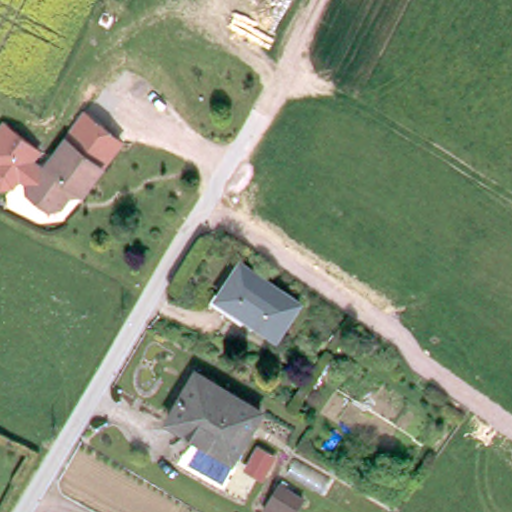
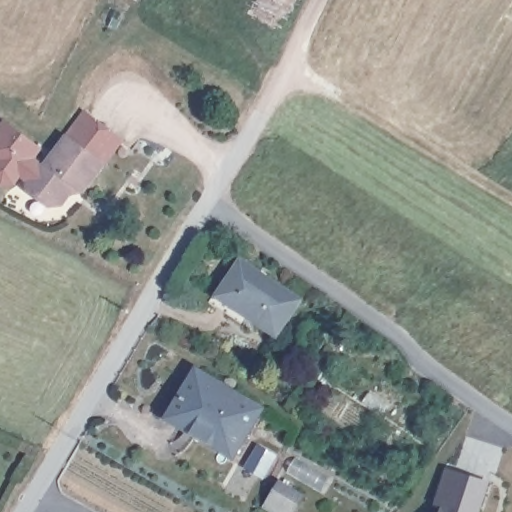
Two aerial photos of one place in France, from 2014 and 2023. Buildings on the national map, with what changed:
unchanged [(64,136),(84,110),(125,139),(105,167),(81,149),(70,140),(64,136)]
unchanged [(37,170),(29,180),(19,176),(12,185),(0,186),(0,124),(4,118),(40,146),(34,156),(43,161),(40,166),(37,170)]
unchanged [(85,193),(72,195),(63,207),(52,208),(30,191),(29,180),(40,166),(50,165),(70,140),(105,167),(85,193)]
unchanged [(280,333),(221,294),(245,260),(303,299),(280,333)]
unchanged [(236,455),(171,417),(200,369),(264,407),(236,455)]
new [(482,512),(441,512),(442,509),(435,507),(447,468),(490,481),(482,512)]
unchanged [(278,512),(267,505),(282,480),(307,494),(296,512),(278,512)]

